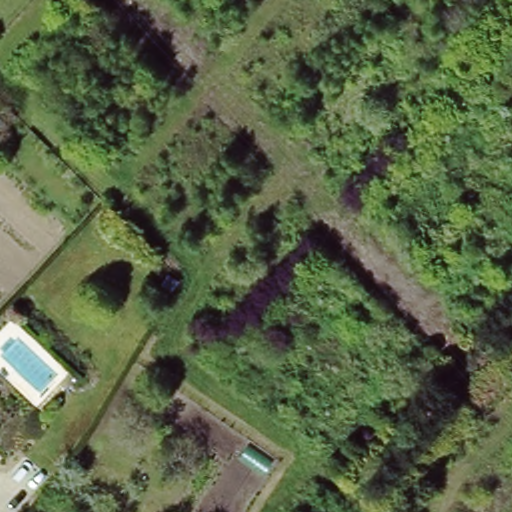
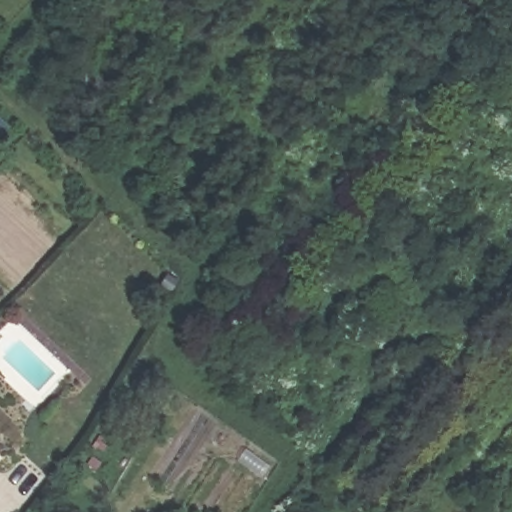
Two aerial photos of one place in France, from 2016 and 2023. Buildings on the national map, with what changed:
[]

